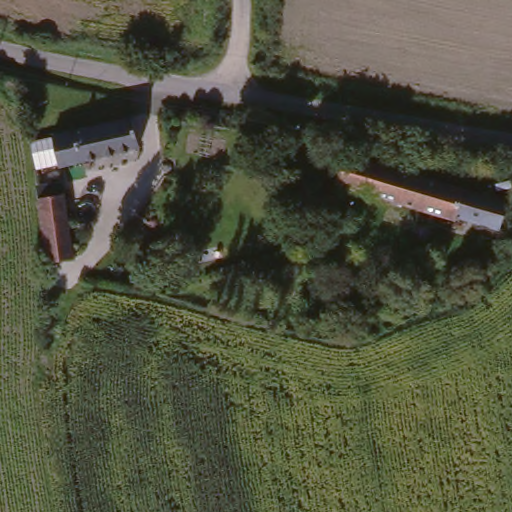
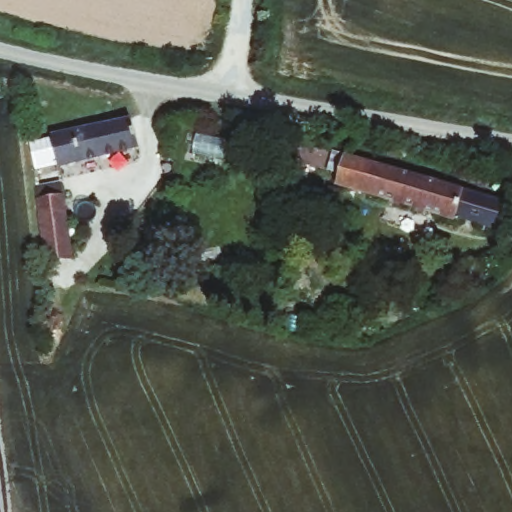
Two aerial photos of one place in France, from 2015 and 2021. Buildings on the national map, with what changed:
unchanged [(31,182),(23,144),(135,118),(144,151),(31,182)]
unchanged [(451,231),(334,199),(343,165),(459,196),(453,223),(451,231)]
unchanged [(63,192),(73,239),(77,256),(45,264),(31,198),(63,192)]
unchanged [(459,196),(501,207),(495,233),(453,223),(459,196)]

